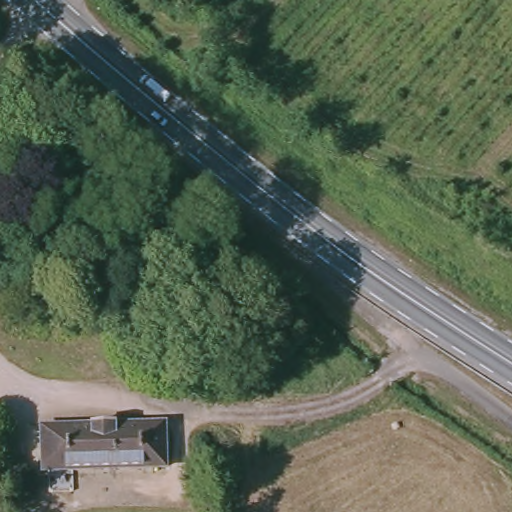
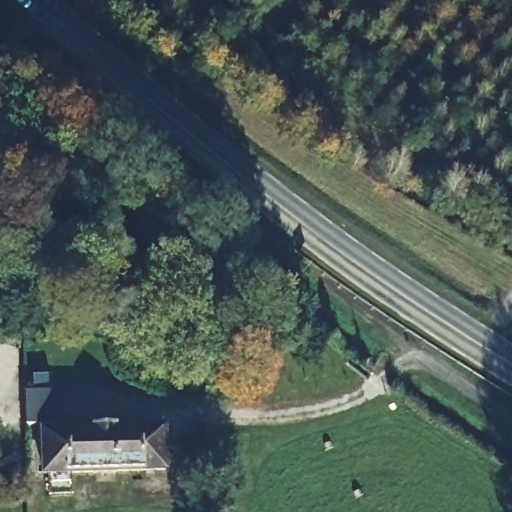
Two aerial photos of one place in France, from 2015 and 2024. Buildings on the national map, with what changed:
unchanged [(166,474),(44,474),(45,433),(64,433),(166,433),(166,474)]

